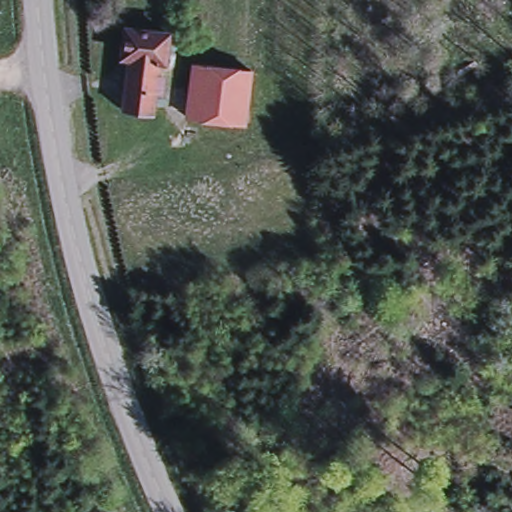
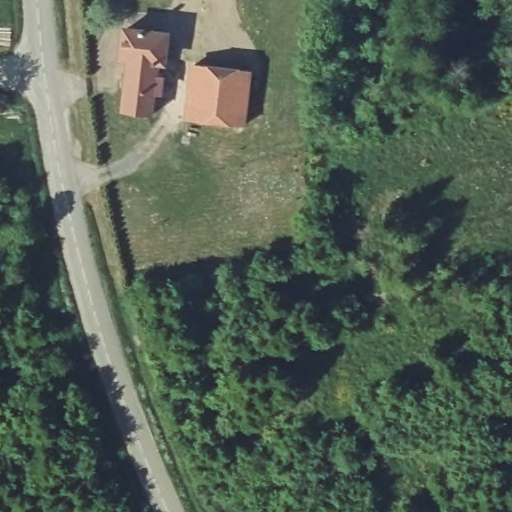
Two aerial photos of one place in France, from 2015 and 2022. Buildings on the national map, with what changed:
unchanged [(150,65),(149,80),(155,81),(155,95),(145,96),(145,112),(118,111),(125,65),(117,65),(121,33),(163,39),(160,64),(150,65)]
unchanged [(193,70),(250,74),(241,103),(189,93),(193,70)]
unchanged [(241,103),(237,129),(184,123),(189,93),(241,103)]

